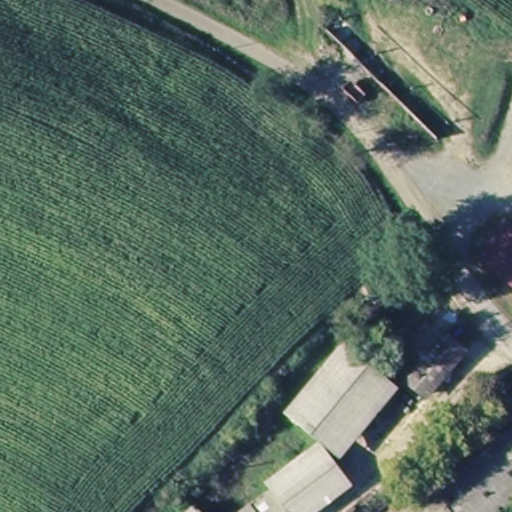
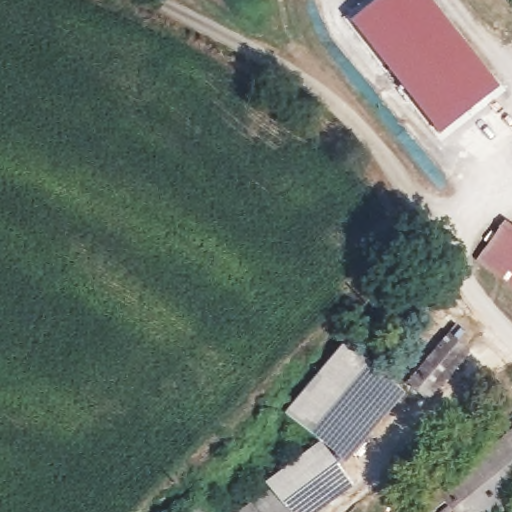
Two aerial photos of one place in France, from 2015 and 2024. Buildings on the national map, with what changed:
new [(351,20),(378,0),(428,0),(492,81),(433,126),(351,20)]
unchanged [(512,229),(512,285),(483,262),(508,227),(512,229)]
unchanged [(438,338),(463,359),(426,402),(400,382),(438,338)]
unchanged [(285,403),(350,344),(363,359),(398,396),(330,456),(311,434),(285,403)]
unchanged [(512,437),(512,507),(505,512),(408,512),(512,437)]
unchanged [(260,479),(257,471),(308,438),(342,489),(306,512),(209,512),(260,479)]
unchanged [(177,490),(194,512),(147,512),(177,490)]
unchanged [(373,511),(374,512),(372,512),(373,511)]

